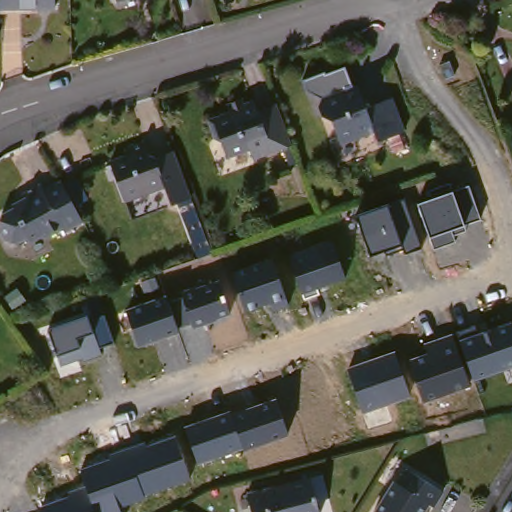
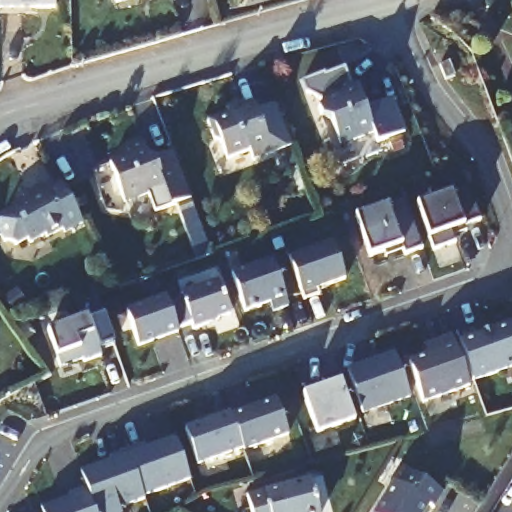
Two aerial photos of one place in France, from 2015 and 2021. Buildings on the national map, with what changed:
unchanged [(3,8),(3,0),(59,0),(59,6),(3,8)]
unchanged [(119,0),(134,0),(120,5),(119,0)]
unchanged [(318,107),(327,95),(315,84),(312,74),(335,67),(335,69),(355,63),(361,82),(354,85),(355,89),(367,86),(373,106),(397,98),(408,134),(380,143),(378,135),(341,146),(333,120),(321,117),(318,107)]
unchanged [(257,156),(254,150),(232,154),(218,119),(232,113),(228,104),(259,96),(263,109),(282,104),(295,145),(257,156)]
unchanged [(198,202),(177,211),(169,191),(129,207),(114,166),(135,158),(133,151),(147,146),(152,161),(157,161),(179,153),(198,202)]
unchanged [(80,210),(87,223),(72,230),(69,224),(50,234),(49,231),(32,240),(31,237),(24,241),(12,238),(7,228),(11,212),(31,201),(27,194),(47,184),(52,192),(66,184),(80,210)]
unchanged [(481,220),(464,225),(451,229),(456,242),(434,250),(429,236),(418,204),(453,192),(468,186),(481,220)]
unchanged [(419,250),(405,254),(401,245),(369,255),(357,217),(386,207),(403,200),(419,250)]
unchanged [(344,279),(301,295),(288,258),(330,242),(344,279)]
unchanged [(283,299),(246,310),(235,276),(272,263),(283,299)]
unchanged [(228,316),(193,328),(190,322),(177,327),(179,333),(138,347),(126,312),(216,282),(228,316)]
unchanged [(100,346),(102,352),(59,366),(57,356),(48,332),(90,317),(103,313),(113,341),(100,346)]
unchanged [(512,367),(473,379),(458,334),(477,329),(479,334),(510,324),(512,330),(512,367)]
unchanged [(423,402),(409,360),(428,353),(425,345),(452,336),(470,386),(423,402)]
unchanged [(363,413),(348,370),(395,354),(410,396),(363,413)]
new [(340,380),(356,423),(317,436),(303,395),(340,380)]
unchanged [(241,452),(240,449),(196,465),(183,427),(228,412),(231,416),(274,400),(287,434),(241,452)]
unchanged [(118,506),(120,512),(40,512),(39,508),(70,497),(68,493),(85,486),(79,470),(114,457),(113,454),(141,444),(144,448),(173,436),(190,479),(118,506)]
unchanged [(402,488),(406,491),(415,477),(451,501),(444,512),(386,512),(402,488)]
unchanged [(289,487),(317,479),(327,512),(259,512),(254,497),(289,487)]

